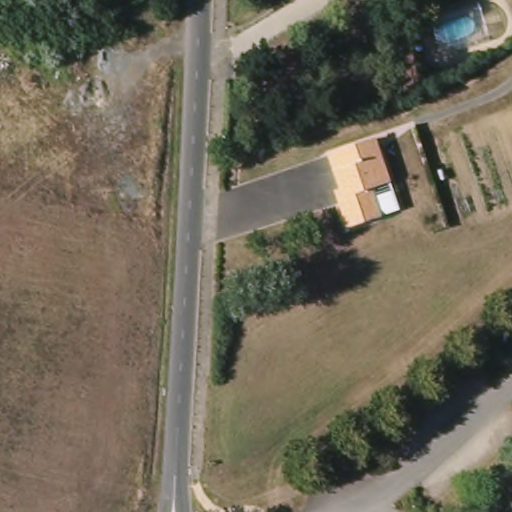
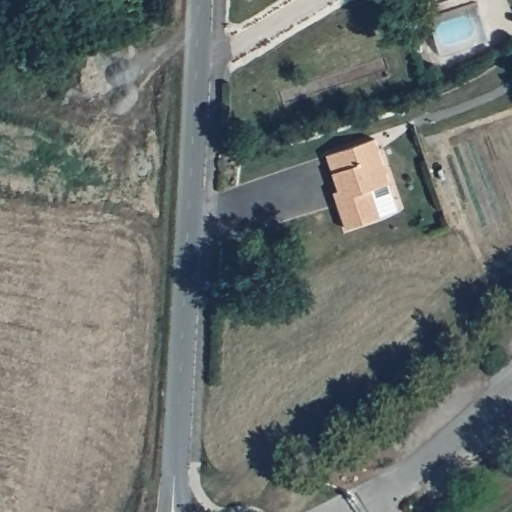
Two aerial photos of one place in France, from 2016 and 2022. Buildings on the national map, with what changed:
unchanged [(393,181),(375,187),(382,214),(348,224),(340,196),(345,194),(332,152),(380,137),(393,181)]

